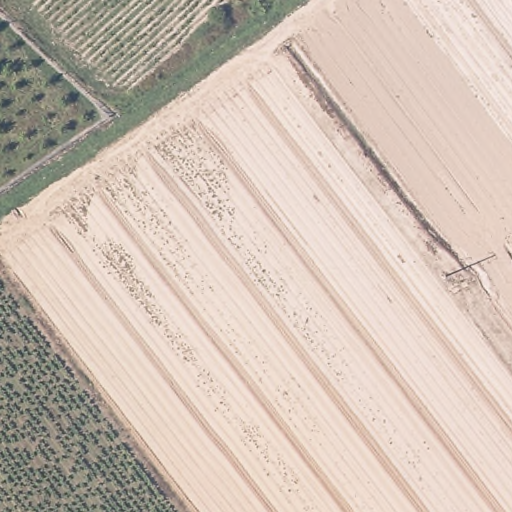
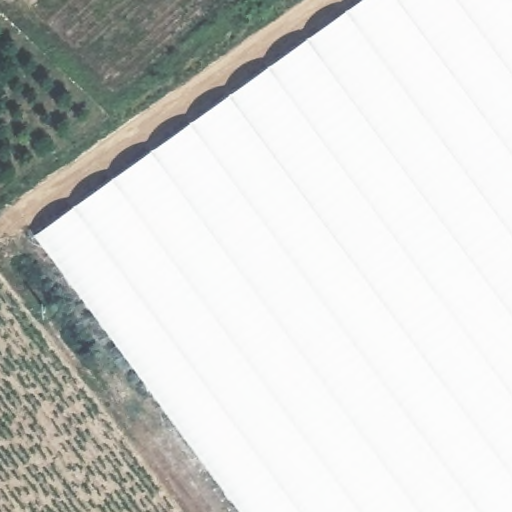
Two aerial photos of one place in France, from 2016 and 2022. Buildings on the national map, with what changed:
new [(239,512),(34,236),(360,0),(512,0),(512,512),(239,512)]

